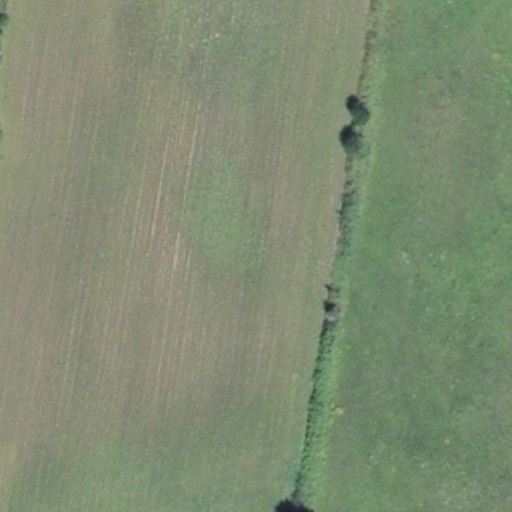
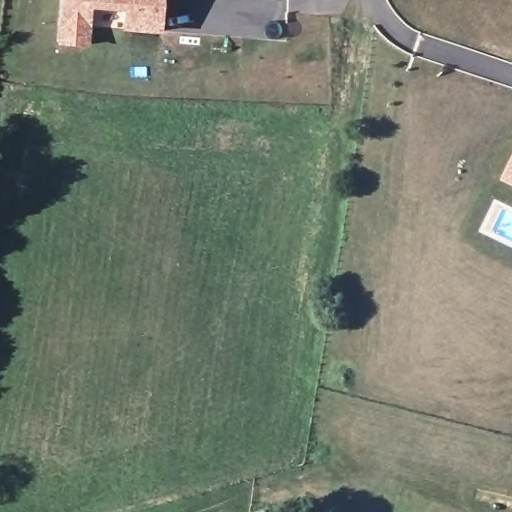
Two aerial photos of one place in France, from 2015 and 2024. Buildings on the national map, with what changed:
new [(122,31),(123,10),(92,8),(89,46),(58,43),(61,0),(163,0),(161,34),(122,31)]
new [(512,160),(512,184),(503,179),(512,160)]

